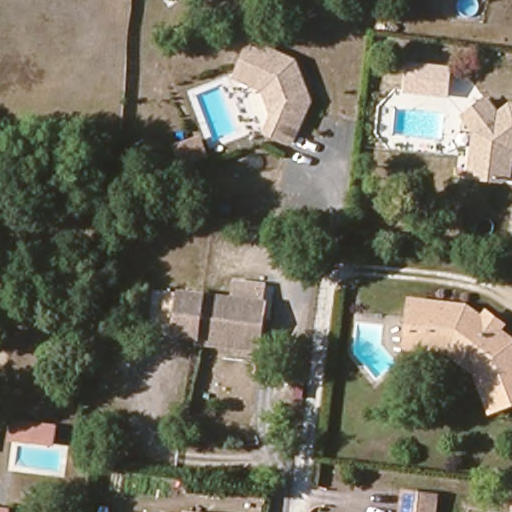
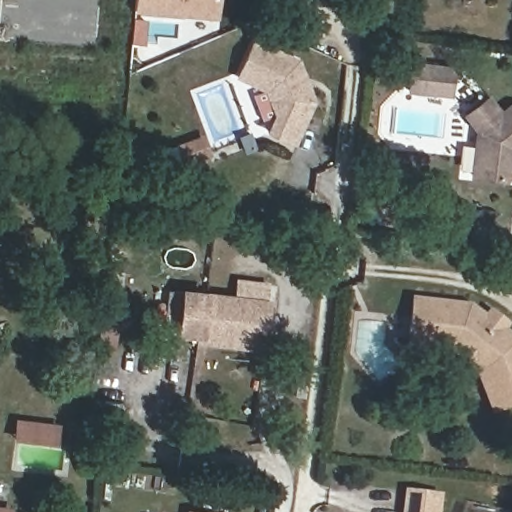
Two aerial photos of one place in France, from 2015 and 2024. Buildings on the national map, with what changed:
new [(133,14),(134,0),(219,0),(217,21),(133,14)]
unchanged [(312,102),(294,144),(269,132),(276,116),(270,100),(267,91),(239,79),(254,43),(297,62),(312,102)]
unchanged [(405,93),(408,62),(453,65),(451,97),(405,93)]
unchanged [(510,151),(506,176),(500,181),(467,177),(473,132),(461,117),(483,100),(495,115),(508,106),(512,106),(512,149),(510,151)]
unchanged [(220,161),(203,167),(196,150),(213,144),(220,161)]
unchanged [(129,315),(116,312),(119,288),(132,290),(129,315)]
unchanged [(269,331),(259,330),(257,348),(237,347),(236,352),(206,348),(206,343),(182,341),(188,298),(272,308),(269,331)]
unchanged [(512,338),(512,404),(493,411),(484,389),(492,386),(483,364),(454,343),(433,341),(434,333),(410,330),(413,301),(469,307),(485,318),(501,330),(512,338)]
unchanged [(58,443),(16,437),(19,417),(62,420),(58,443)]
unchanged [(433,497),(432,512),(399,512),(401,492),(433,497)]
unchanged [(12,512),(0,512),(0,506),(13,507),(12,512)]

